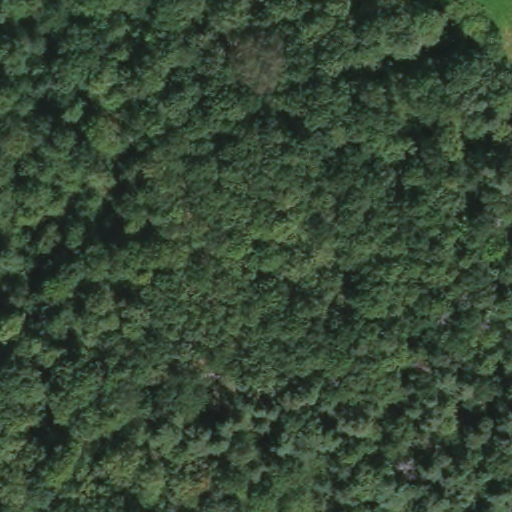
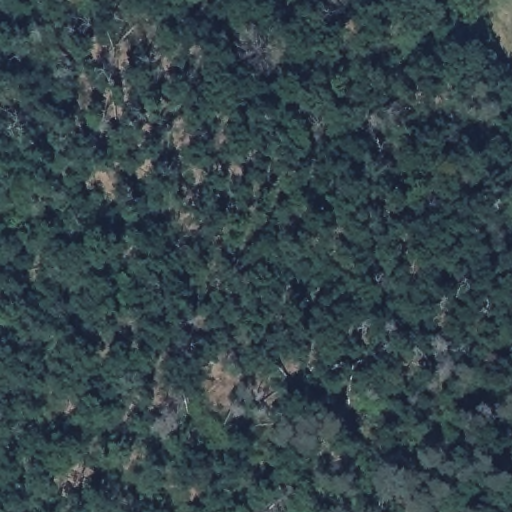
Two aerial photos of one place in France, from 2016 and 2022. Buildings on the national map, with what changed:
[]

